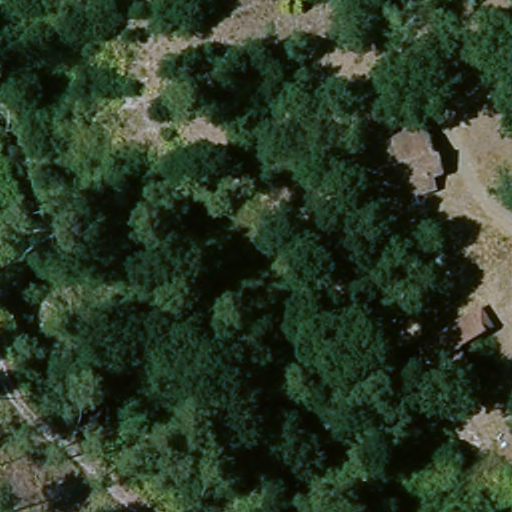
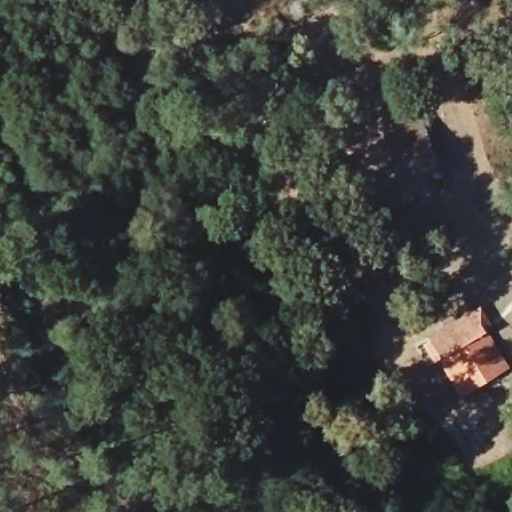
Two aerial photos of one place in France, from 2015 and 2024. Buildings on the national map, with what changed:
unchanged [(392,142),(437,128),(444,157),(400,169),(392,142)]
unchanged [(444,157),(450,183),(408,196),(400,169),(444,157)]
new [(494,327),(487,330),(512,370),(512,371),(462,399),(439,361),(435,364),(424,345),(431,341),(428,337),(481,306),(494,327)]
demolished [(431,340),(477,312),(491,337),(445,367),(431,340)]

